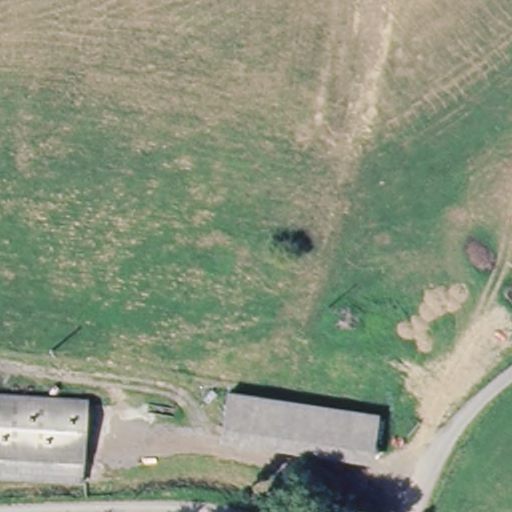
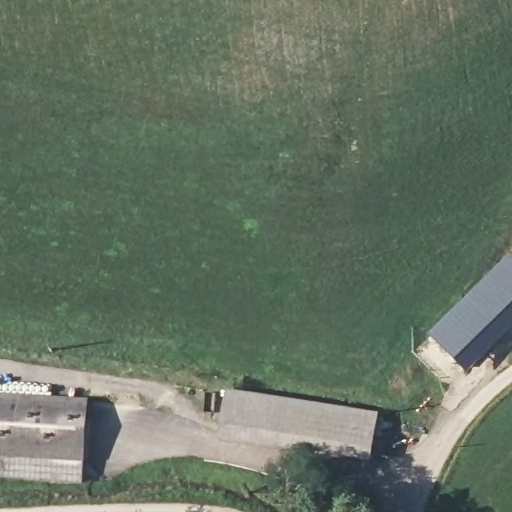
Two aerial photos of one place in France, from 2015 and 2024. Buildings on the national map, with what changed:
new [(428,333),(508,254),(512,257),(512,327),(492,347),(488,339),(487,338),(497,325),(457,362),(428,333)]
unchanged [(93,404),(91,456),(89,457),(87,488),(45,486),(0,483),(0,394),(93,404)]
unchanged [(378,416),(377,450),(291,447),(222,445),(221,412),(297,414),(378,416)]

